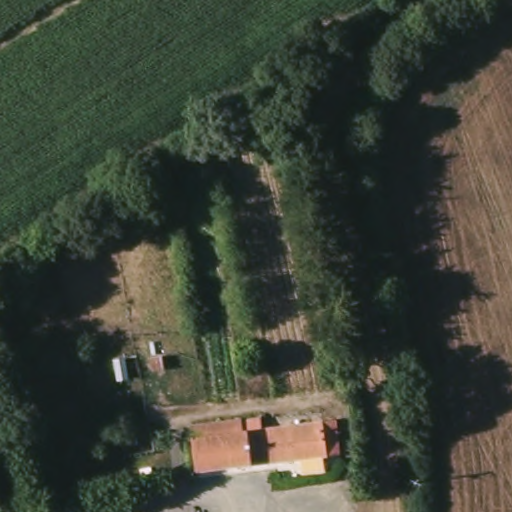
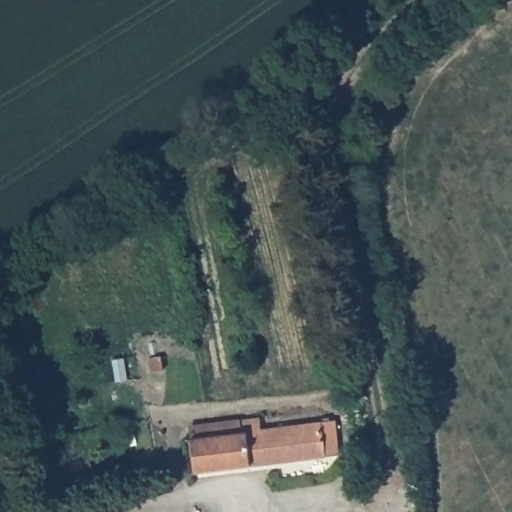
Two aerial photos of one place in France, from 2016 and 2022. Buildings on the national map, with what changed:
unchanged [(269,424),(339,415),(343,452),(197,469),(194,438),(202,437),(198,423),(219,421),(268,416),(269,424)]

